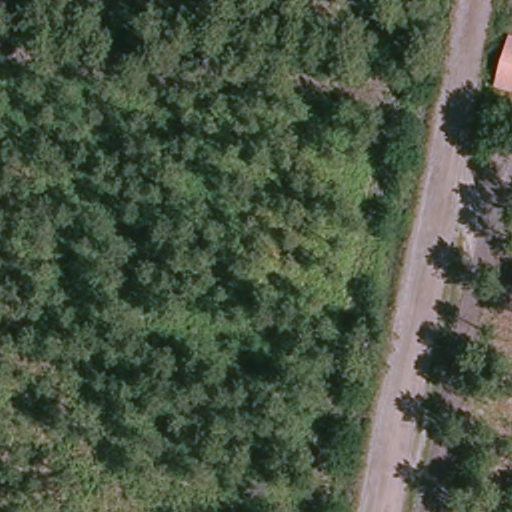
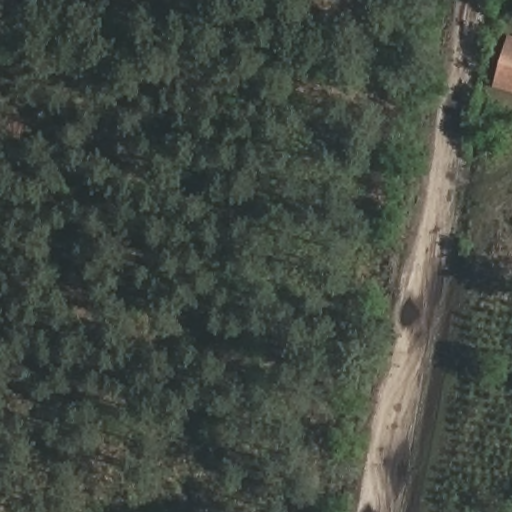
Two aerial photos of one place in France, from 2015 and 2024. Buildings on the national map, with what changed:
unchanged [(507,37),(512,38),(512,95),(493,92),(507,37)]

